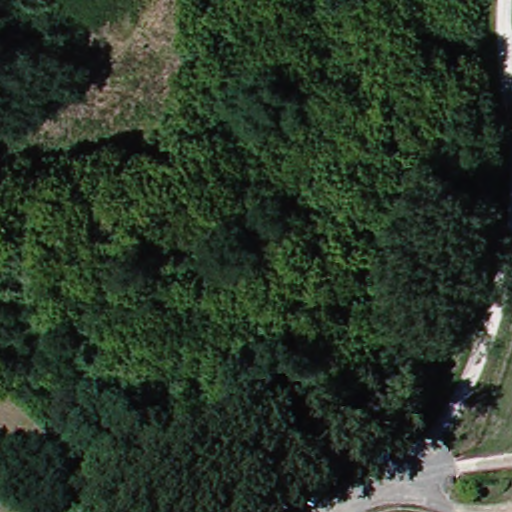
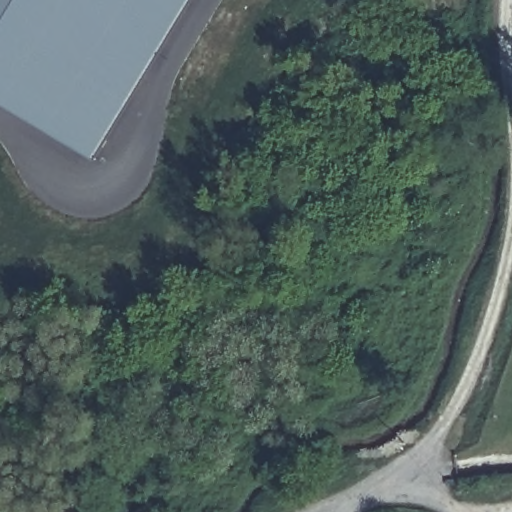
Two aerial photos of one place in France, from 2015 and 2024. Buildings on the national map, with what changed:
new [(0,100),(0,0),(194,0),(97,160),(0,100)]

